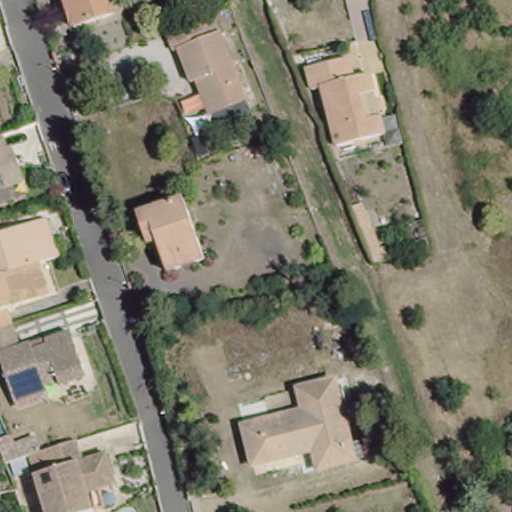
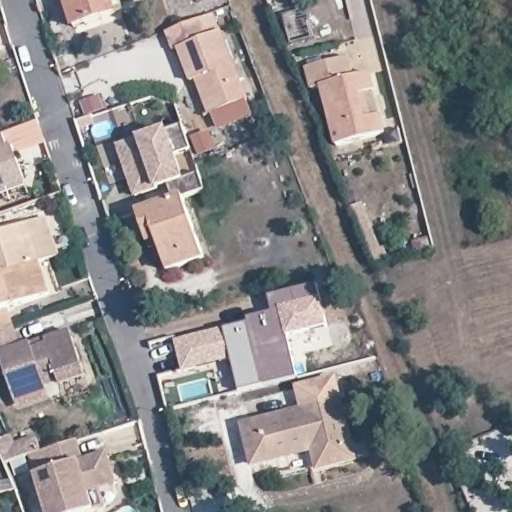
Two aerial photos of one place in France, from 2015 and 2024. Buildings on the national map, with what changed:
unchanged [(73,17),(67,0),(111,0),(115,12),(110,14),(85,22),(75,25),(73,17)]
demolished [(340,3),(339,0),(353,0),(340,3)]
unchanged [(182,50),(173,52),(166,33),(203,20),(211,41),(225,36),(248,102),(215,113),(206,116),(193,82),(182,50)]
unchanged [(355,81),(371,77),(386,138),(341,149),(326,88),(314,90),(309,71),(350,62),(355,81)]
new [(172,197),(168,186),(156,190),(135,197),(119,146),(139,140),(169,130),(183,125),(192,151),(178,155),(185,177),(200,174),(205,188),(183,194),(172,197)]
unchanged [(15,132),(33,177),(0,191),(0,137),(15,132)]
unchanged [(146,245),(143,233),(136,208),(183,194),(201,257),(163,267),(160,258),(159,257),(159,255),(159,254),(158,252),(158,250),(157,248),(157,246),(156,242),(150,244),(146,245)]
new [(364,204),(386,261),(374,265),(351,208),(364,204)]
unchanged [(34,263),(36,267),(0,279),(0,235),(40,222),(44,235),(36,238),(27,241),(34,263)]
unchanged [(0,369),(0,279),(36,267),(46,297),(3,312),(9,327),(12,327),(19,348),(28,346),(30,350),(46,345),(46,341),(72,332),(88,380),(61,388),(45,393),(12,405),(0,369)]
new [(317,283),(328,328),(288,337),(278,308),(272,311),(269,297),(317,283)]
new [(247,322),(272,311),(278,308),(288,337),(298,378),(239,392),(230,360),(222,328),(247,322)]
new [(222,328),(230,360),(182,372),(174,341),(222,328)]
unchanged [(343,461),(316,468),(312,449),(250,463),(241,423),(302,408),(297,385),(334,376),(351,442),(355,458),(343,461)]
unchanged [(15,442),(19,455),(9,458),(4,445),(15,442)]
unchanged [(109,462),(118,490),(95,498),(98,512),(50,512),(33,463),(79,448),(86,468),(109,462)]

